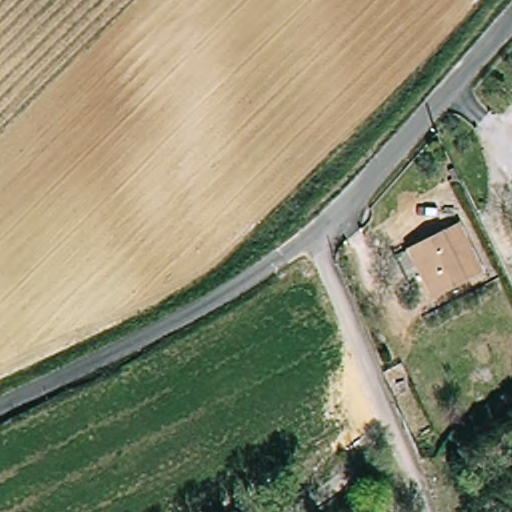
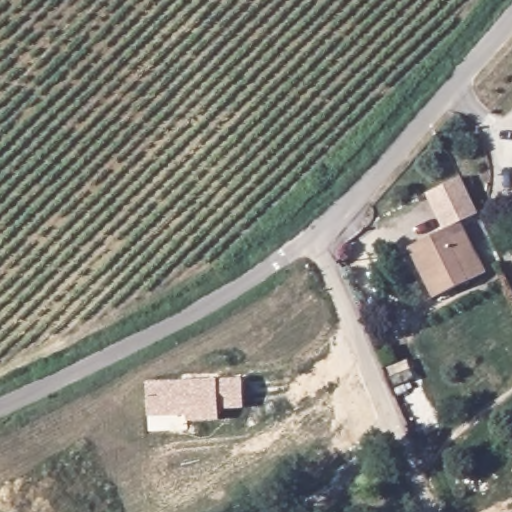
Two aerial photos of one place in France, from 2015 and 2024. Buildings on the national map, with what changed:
unchanged [(466,225),(478,252),(468,257),(476,284),(438,300),(413,247),(466,225)]
new [(242,377),(243,410),(218,410),(218,420),(186,421),(186,415),(147,417),(145,383),(217,378),(242,377)]

